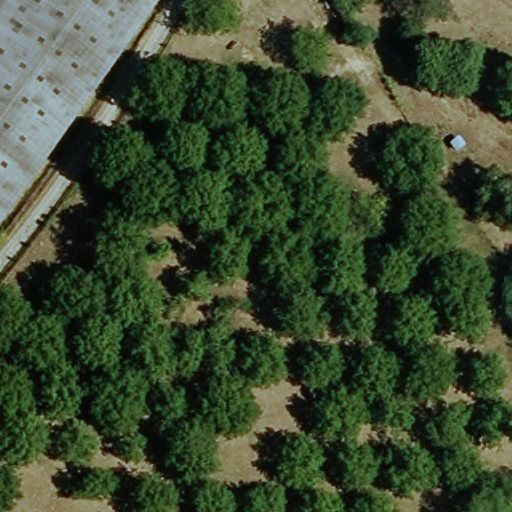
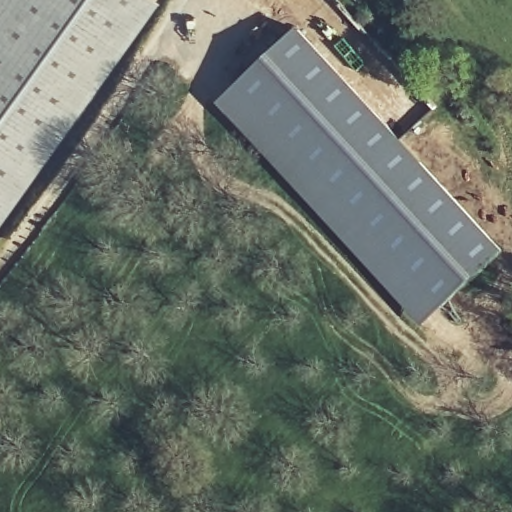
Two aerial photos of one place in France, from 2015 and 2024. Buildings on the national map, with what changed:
unchanged [(139,0),(149,8),(0,205),(0,0),(139,0)]
new [(505,252),(424,324),(219,102),(299,28),(505,252)]

